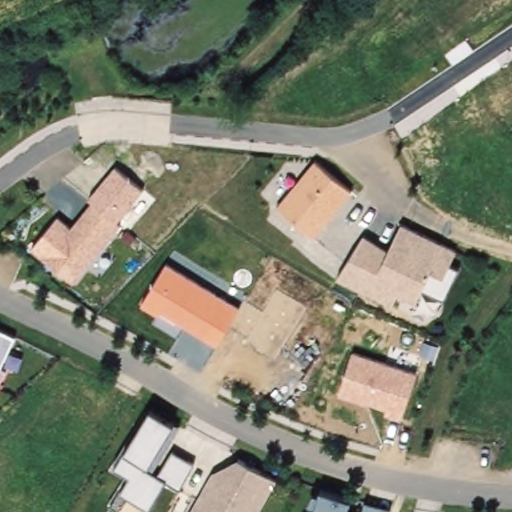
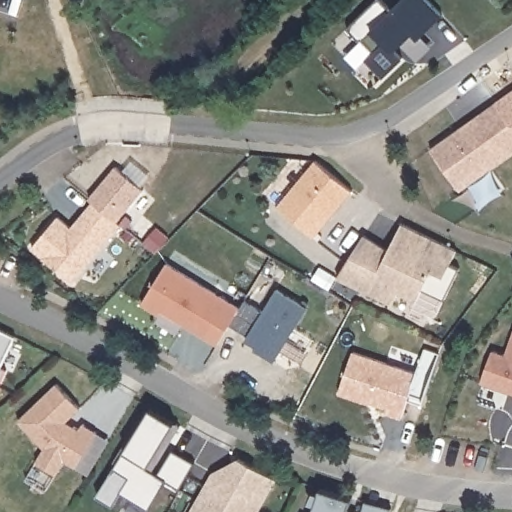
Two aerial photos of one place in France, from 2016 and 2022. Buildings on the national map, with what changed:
new [(403,64),(386,47),(381,53),(389,61),(369,80),(353,64),(361,55),(348,43),(346,45),(333,31),(365,0),(378,12),(390,0),(411,0),(428,17),(407,38),(418,49),(403,64)]
new [(512,140),(485,102),(498,93),(512,83),(512,140)]
new [(485,102),(512,140),(512,146),(449,190),(419,149),(449,127),(469,113),(485,102)]
unchanged [(313,161),(351,192),(312,237),(277,205),(313,161)]
unchanged [(57,216),(69,226),(91,202),(87,198),(114,166),(143,191),(115,222),(120,227),(72,282),(31,248),(57,216)]
unchanged [(362,235),(387,252),(399,224),(456,250),(449,266),(457,269),(441,299),(420,291),(415,301),(397,292),(391,306),(336,278),(362,235)]
unchanged [(166,262),(239,306),(218,344),(162,311),(160,314),(141,303),(166,262)]
new [(274,359),(256,348),(258,344),(247,337),(249,334),(229,323),(239,306),(244,300),(263,310),(277,289),(306,306),(274,359)]
unchanged [(15,337),(0,368),(0,331),(15,337)]
new [(493,349),(506,354),(512,336),(512,391),(482,380),(493,349)]
unchanged [(352,352),(414,373),(401,419),(384,414),(387,408),(337,393),(352,352)]
unchanged [(4,370),(0,381),(0,368),(4,370)]
new [(45,445),(19,419),(57,383),(80,407),(65,420),(80,427),(83,423),(110,439),(88,474),(65,460),(57,472),(37,460),(45,445)]
unchanged [(125,448),(150,410),(172,422),(178,426),(152,470),(158,475),(171,450),(192,463),(178,488),(164,480),(147,506),(119,490),(128,476),(114,466),(125,448)]
unchanged [(238,458),(275,480),(258,512),(189,512),(211,474),(238,458)]
unchanged [(350,499),(347,509),(356,512),(313,512),(320,491),(350,499)]
unchanged [(389,508),(388,512),(362,512),(365,502),(389,508)]

